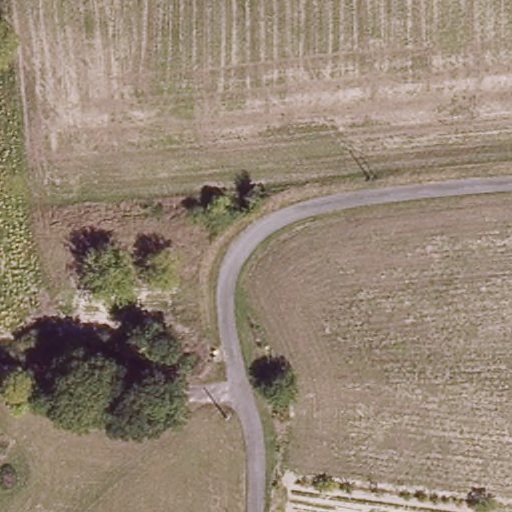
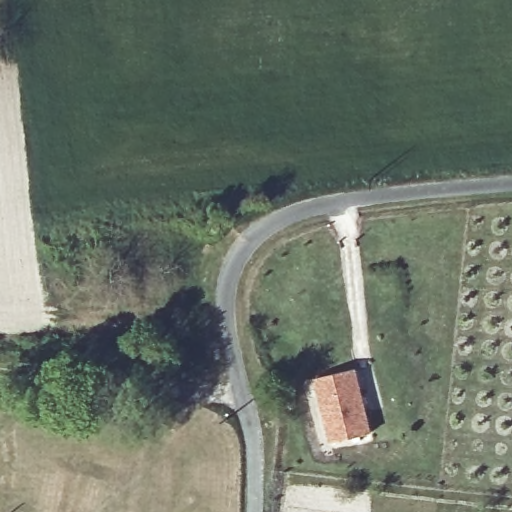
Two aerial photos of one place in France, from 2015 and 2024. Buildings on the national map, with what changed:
new [(358,368),(375,434),(331,446),(314,378),(358,368)]

